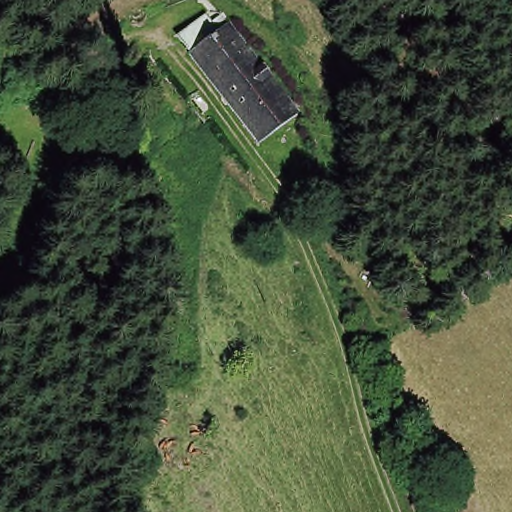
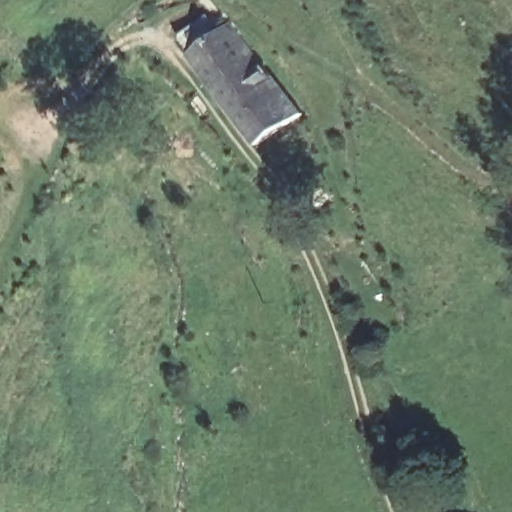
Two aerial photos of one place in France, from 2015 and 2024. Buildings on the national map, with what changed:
unchanged [(292,110),(253,138),(185,48),(170,31),(198,10),(211,27),(223,19),(292,110)]

